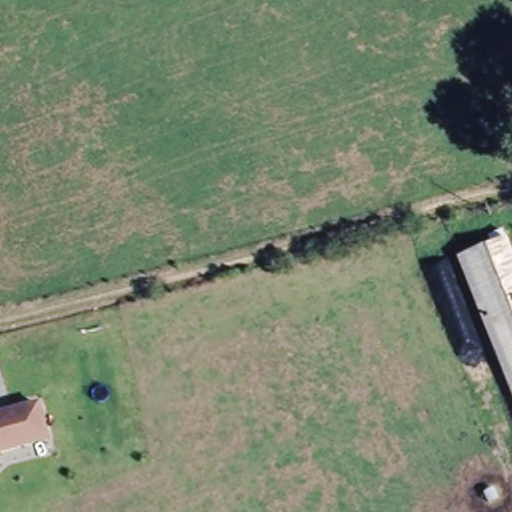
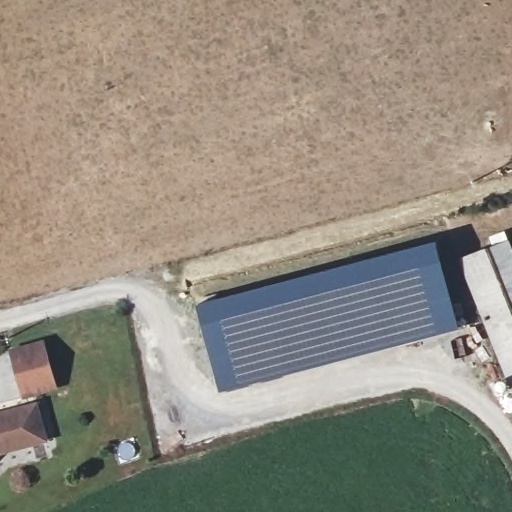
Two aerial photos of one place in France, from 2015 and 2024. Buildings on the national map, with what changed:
new [(462,329),(221,394),(195,304),(437,240),(462,329)]
unchanged [(506,246),(512,260),(512,398),(458,265),(506,246)]
new [(28,401),(20,370),(16,354),(48,347),(51,362),(59,393),(28,401)]
unchanged [(35,402),(46,439),(0,455),(0,412),(35,402)]

